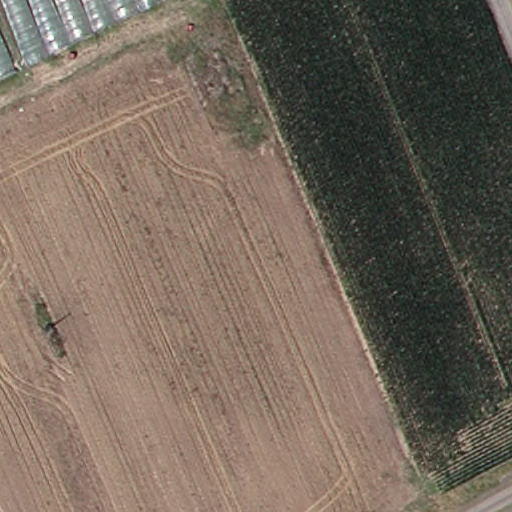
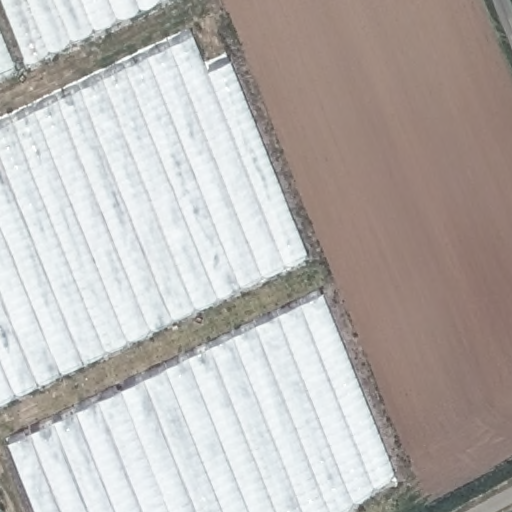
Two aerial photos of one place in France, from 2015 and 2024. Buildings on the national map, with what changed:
unchanged [(9,0),(162,0),(35,63),(9,0)]
unchanged [(20,73),(0,83),(0,23),(20,73)]
new [(192,36),(206,73),(230,61),(308,258),(0,406),(0,127),(192,36)]
new [(322,294),(396,475),(346,512),(36,512),(7,443),(322,294)]

